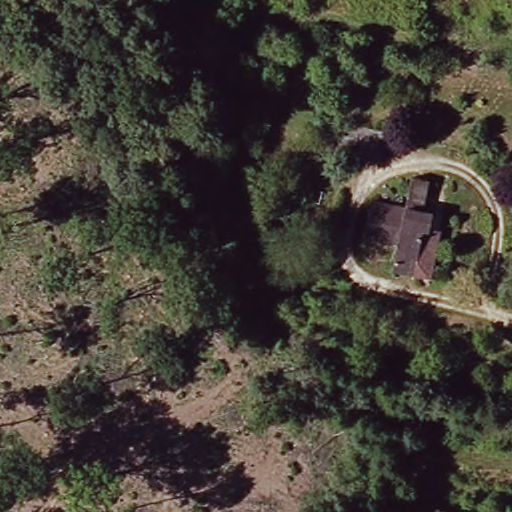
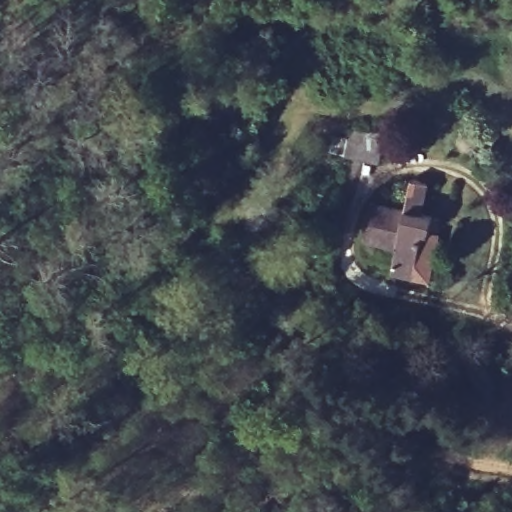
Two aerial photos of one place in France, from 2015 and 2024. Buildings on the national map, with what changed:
unchanged [(378,164),(345,159),(347,151),(350,135),(383,141),(380,157),(378,164)]
unchanged [(429,188),(423,218),(432,220),(420,282),(391,277),(396,252),(363,246),(371,208),(404,214),(410,184),(429,188)]

